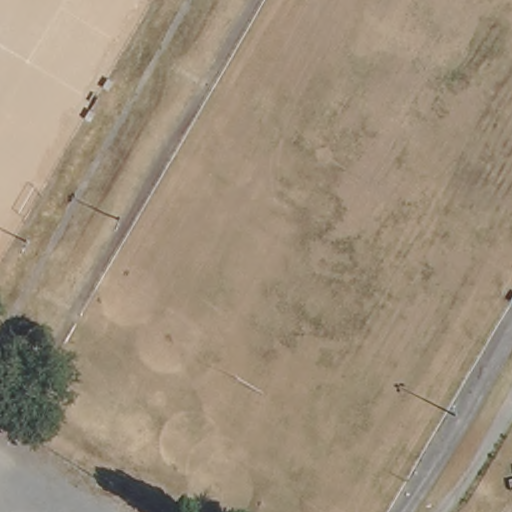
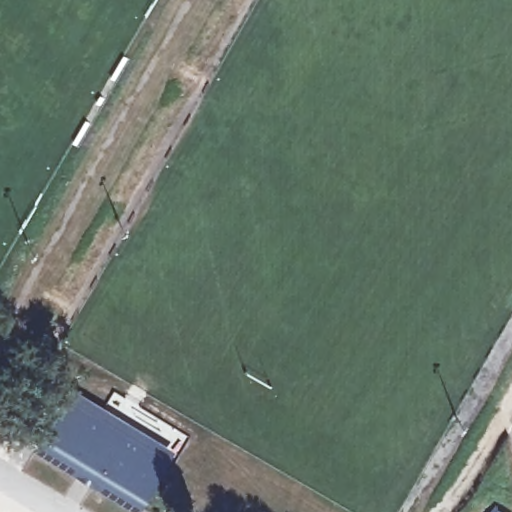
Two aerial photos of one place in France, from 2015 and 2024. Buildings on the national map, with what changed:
unchanged [(113,80),(107,89),(102,86),(107,77),(113,80)]
unchanged [(95,111),(90,120),(83,117),(89,108),(95,111)]
unchanged [(512,301),(512,304),(511,303),(512,301)]
new [(42,447),(73,394),(112,418),(127,428),(166,451),(135,503),(96,479),(80,470),(42,447)]

